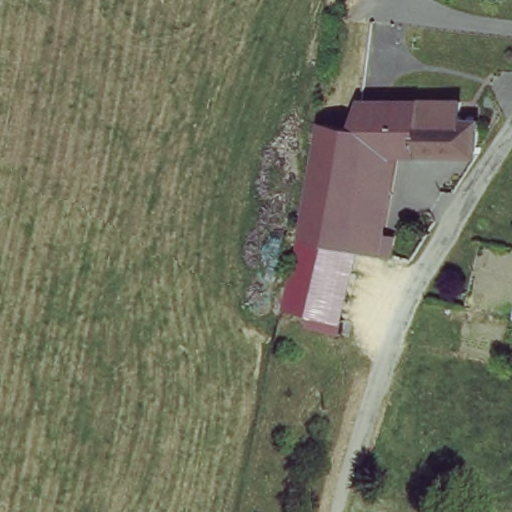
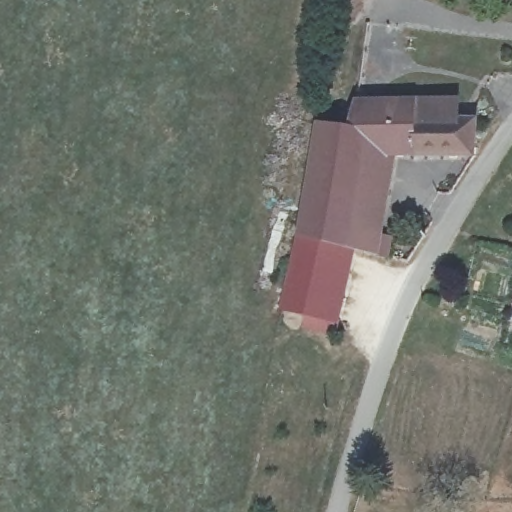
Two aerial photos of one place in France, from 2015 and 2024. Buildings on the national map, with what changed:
unchanged [(405,127),(462,131),(472,131),(479,131),(479,152),(469,164),(361,162),(344,236),(371,241),(370,247),(381,248),(380,262),(357,257),(327,251),(298,244),(323,139),(344,142),(344,109),(406,109),(405,127)]
unchanged [(461,113),(462,131),(405,127),(406,109),(461,113)]
unchanged [(344,328),(285,319),(298,244),(327,251),(357,257),(344,328)]

